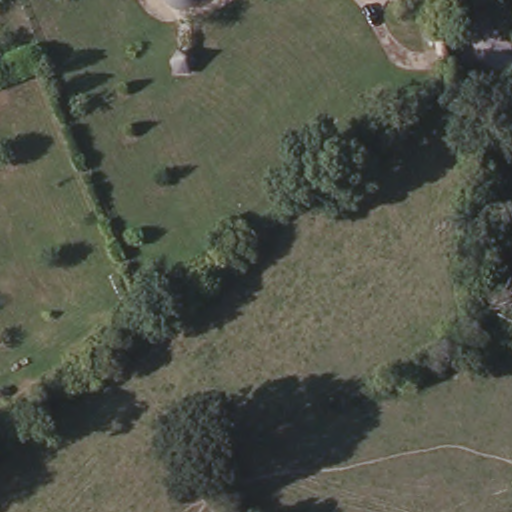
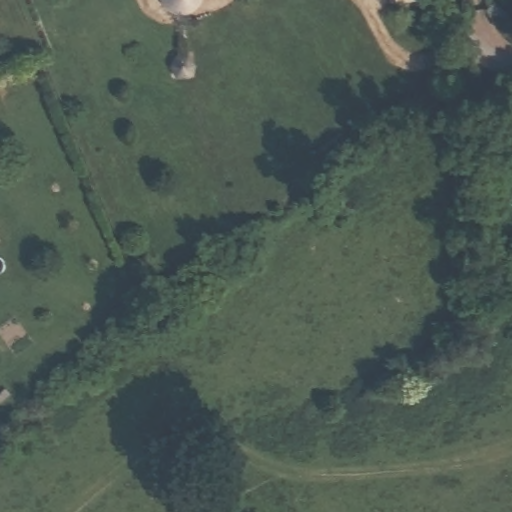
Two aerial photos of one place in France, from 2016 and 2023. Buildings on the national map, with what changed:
unchanged [(187,2),(183,3),(178,2),(174,0),(193,0),(192,0),(187,2)]
unchanged [(190,59),(194,66),(190,75),(180,74),(175,66),(180,59),(190,59)]

